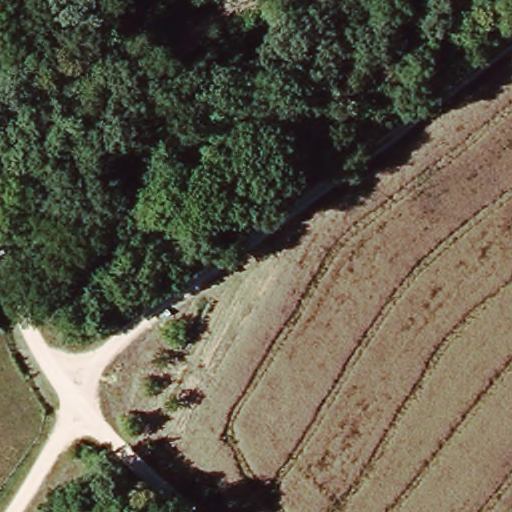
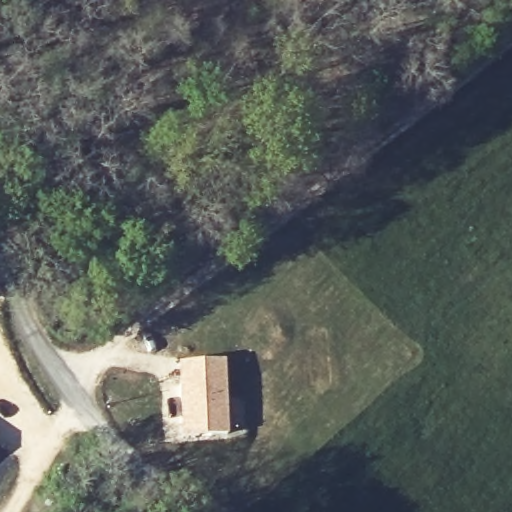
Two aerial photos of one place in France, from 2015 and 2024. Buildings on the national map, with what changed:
new [(225,360),(228,435),(180,437),(177,362),(225,360)]

